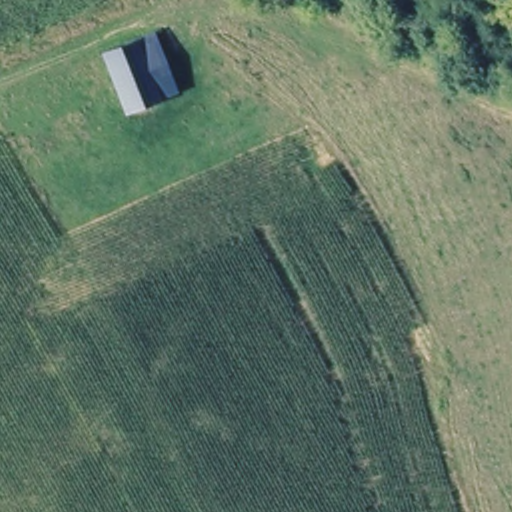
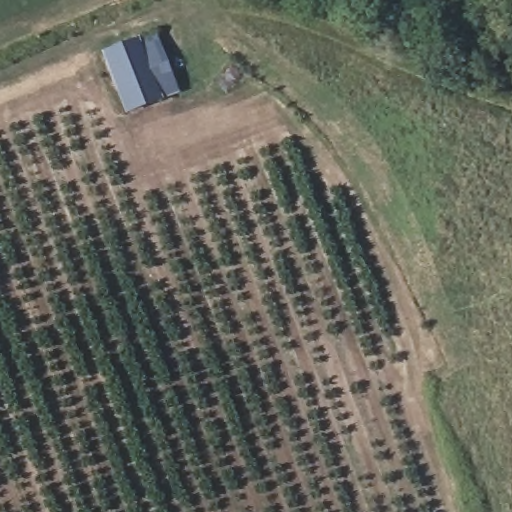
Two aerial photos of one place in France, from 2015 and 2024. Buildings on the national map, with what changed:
unchanged [(169,20),(182,51),(144,68),(156,104),(122,118),(99,57),(169,20)]

